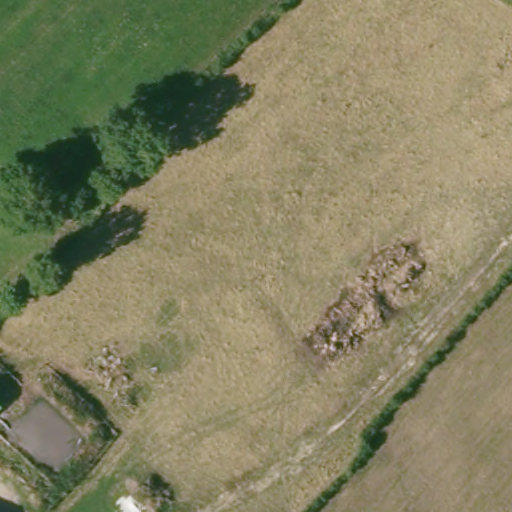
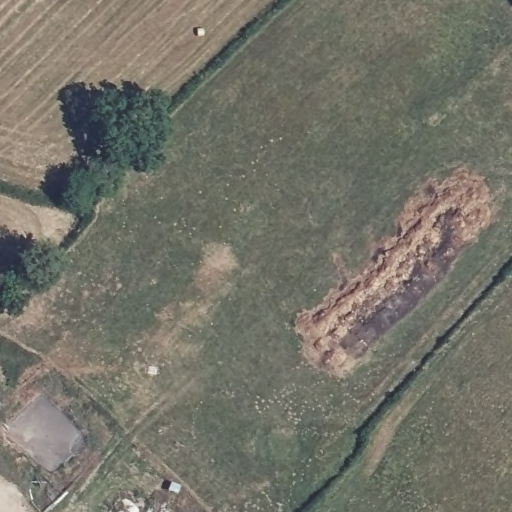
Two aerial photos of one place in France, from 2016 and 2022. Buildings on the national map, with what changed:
unchanged [(3,401),(0,404),(0,398),(3,401)]

